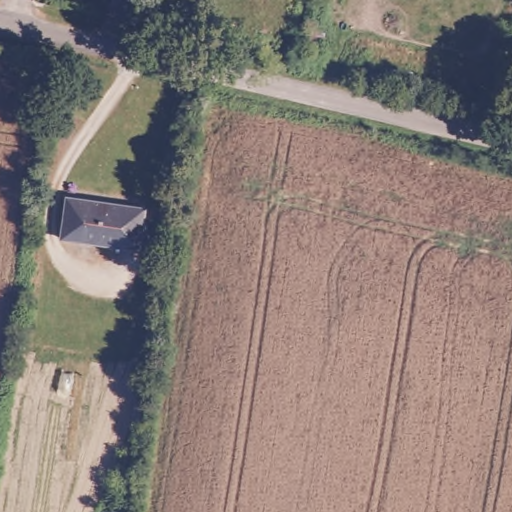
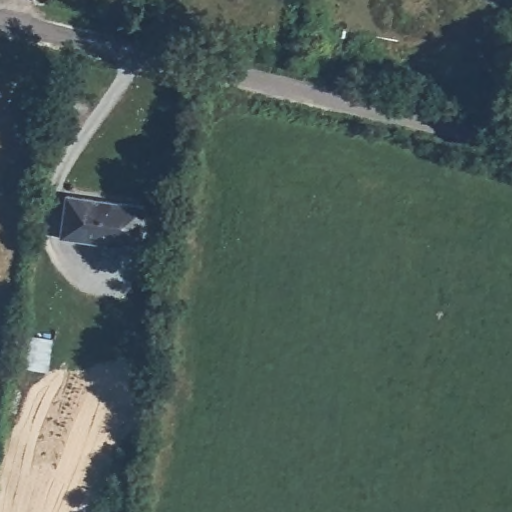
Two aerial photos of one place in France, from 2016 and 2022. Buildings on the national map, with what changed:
unchanged [(137,0),(136,7),(121,4),(121,0),(137,0)]
unchanged [(142,205),(136,251),(57,235),(67,193),(142,205)]

